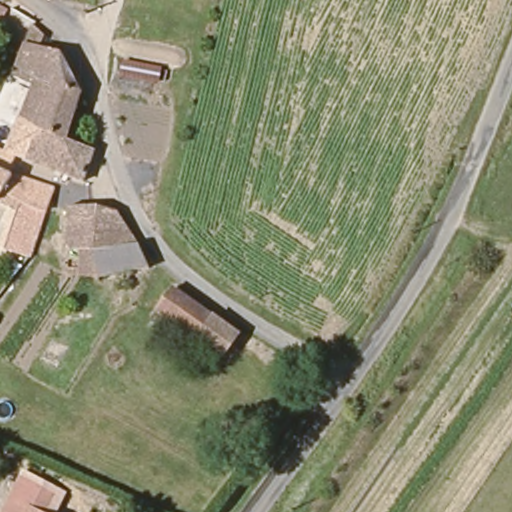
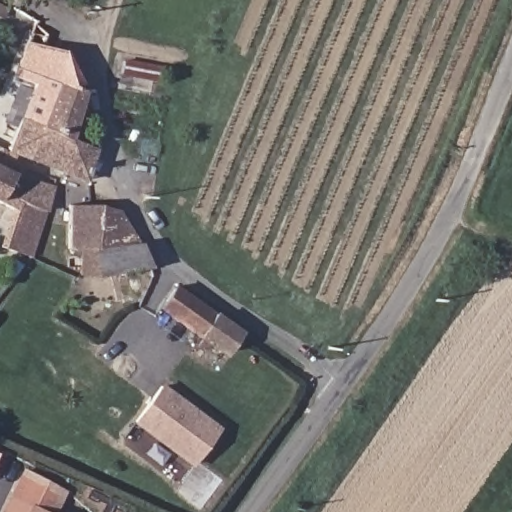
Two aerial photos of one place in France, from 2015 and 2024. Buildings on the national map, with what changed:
unchanged [(7,7),(2,18),(0,17),(0,4),(7,7)]
unchanged [(12,151),(24,121),(37,89),(19,80),(37,27),(49,37),(48,48),(66,53),(88,93),(88,96),(73,142),(99,153),(88,181),(35,160),(12,151)]
unchanged [(160,81),(121,73),(124,58),(163,66),(160,81)]
unchanged [(9,260),(13,252),(7,250),(20,215),(0,205),(0,156),(7,159),(5,163),(17,167),(14,174),(58,190),(35,260),(26,257),(20,266),(9,260)]
unchanged [(103,280),(83,279),(84,254),(71,252),(73,208),(123,211),(142,244),(154,272),(103,280)]
unchanged [(175,285),(241,332),(240,333),(224,356),(158,308),(175,285)]
new [(192,467),(132,422),(162,383),(221,427),(192,467)]
new [(68,492),(57,512),(48,512),(15,495),(27,470),(68,492)]
unchanged [(48,512),(6,512),(15,495),(48,512)]

